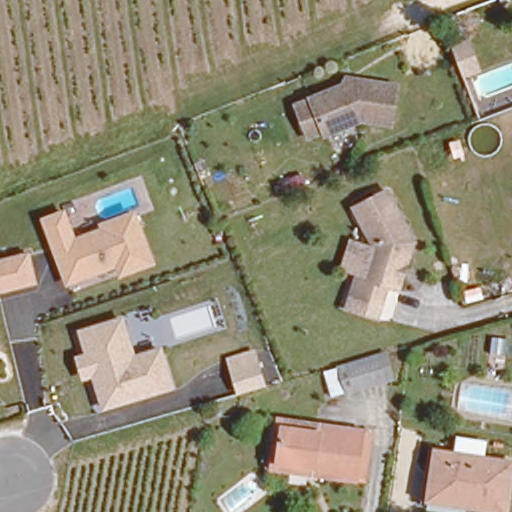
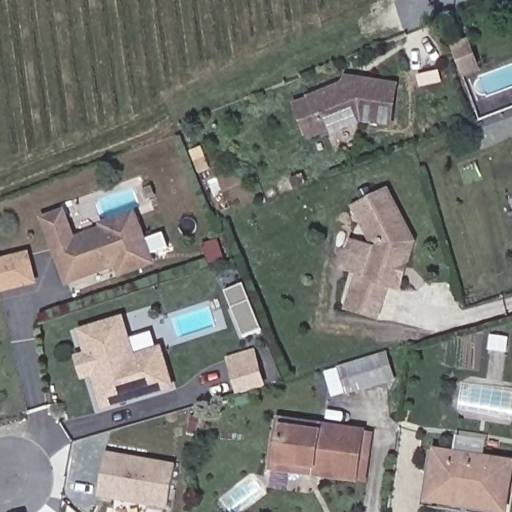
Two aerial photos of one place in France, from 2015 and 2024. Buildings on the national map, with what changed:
new [(475,70),(459,76),(448,46),(464,40),(475,70)]
unchanged [(354,119),(320,135),(316,130),(301,137),(289,105),(350,79),(390,85),(384,125),(354,119)]
unchanged [(358,247),(377,254),(378,250),(359,214),(395,196),(418,243),(402,300),(389,295),(383,314),(353,303),(362,283),(348,278),(358,247)]
unchanged [(121,278),(117,268),(66,286),(41,218),(68,209),(78,235),(101,227),(100,222),(136,210),(158,265),(121,278)]
unchanged [(0,258),(31,251),(39,284),(0,292),(0,258)]
unchanged [(104,410),(93,378),(83,381),(76,356),(86,352),(79,330),(125,316),(137,354),(166,346),(178,390),(104,410)]
unchanged [(269,386),(240,395),(227,357),(257,348),(269,386)]
unchanged [(367,355),(375,383),(339,395),(328,366),(367,355)]
unchanged [(354,477),(319,473),(270,466),(276,416),(285,418),(362,429),(354,477)]
unchanged [(423,490),(430,449),(506,459),(500,510),(463,505),(421,500),(423,490)]
new [(168,510),(98,497),(105,455),(175,467),(168,510)]

